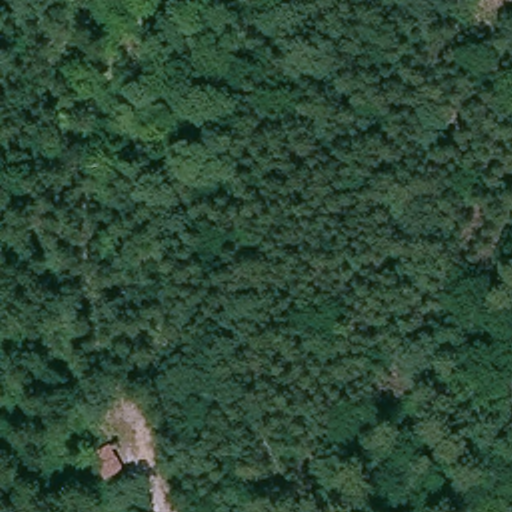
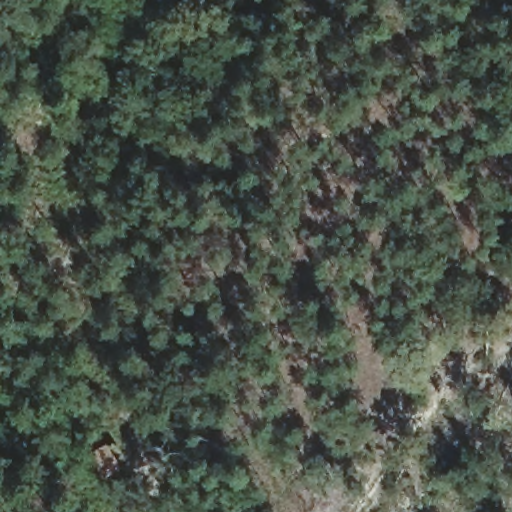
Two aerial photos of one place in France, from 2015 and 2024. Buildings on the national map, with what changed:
unchanged [(125,471),(111,481),(95,456),(109,446),(125,471)]

